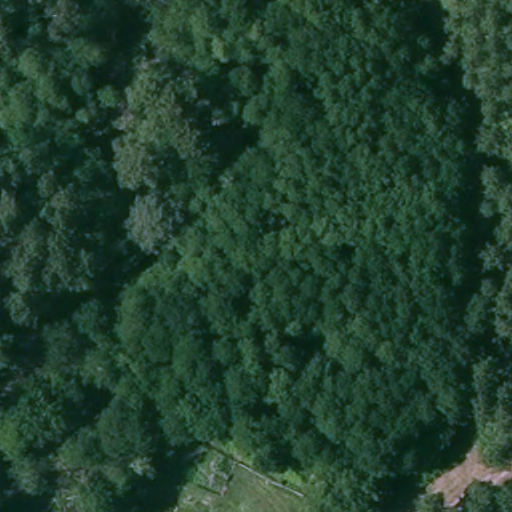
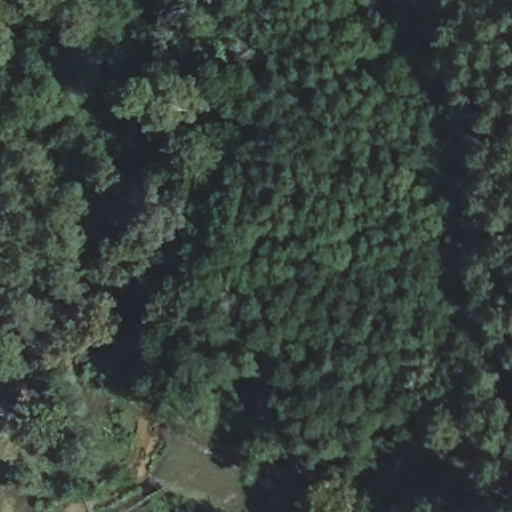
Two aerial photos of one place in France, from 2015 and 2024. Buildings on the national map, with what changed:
[]

